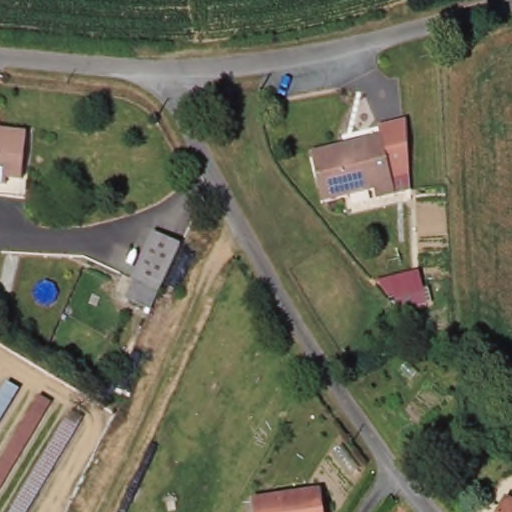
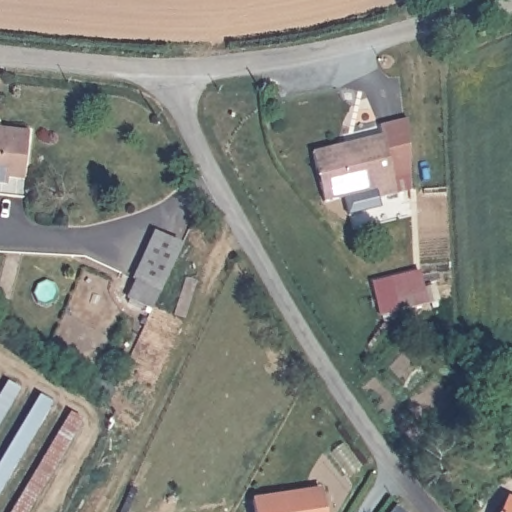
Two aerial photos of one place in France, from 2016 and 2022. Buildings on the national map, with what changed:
unchanged [(405,145),(407,176),(391,181),(394,195),(376,200),(374,190),(322,202),(312,153),(342,145),(343,151),(360,147),(360,140),(371,138),(369,128),(404,120),(405,145)]
unchanged [(27,130),(23,174),(7,176),(8,182),(0,182),(0,128),(27,130)]
unchanged [(131,288),(151,244),(175,252),(153,300),(131,288)]
unchanged [(0,421),(0,391),(5,382),(19,388),(0,421)]
unchanged [(62,408),(78,413),(30,512),(10,512),(62,408)]
unchanged [(252,500),(262,498),(315,491),(319,512),(253,512),(252,500)]
unchanged [(507,500),(512,502),(512,512),(502,512),(507,500)]

